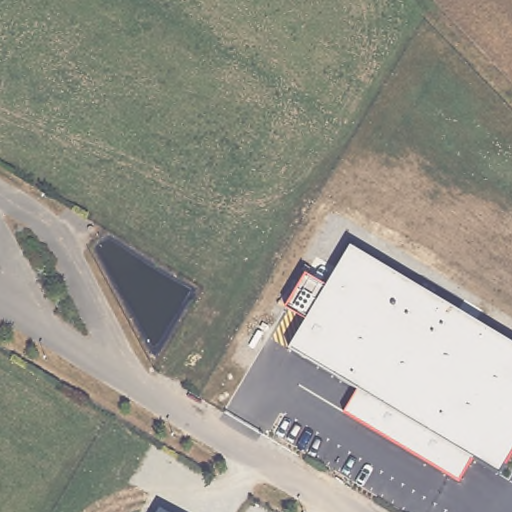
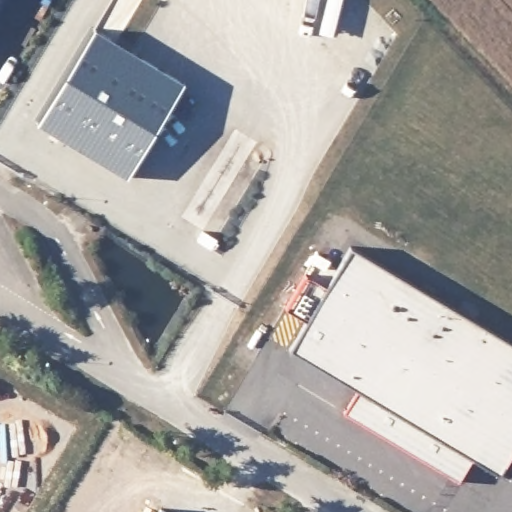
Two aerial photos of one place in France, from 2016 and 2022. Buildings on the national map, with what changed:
new [(95,26),(187,82),(129,177),(39,124),(95,26)]
unchanged [(307,321),(285,307),(307,272),(329,285),(352,245),(512,343),(512,453),(501,473),(474,457),(459,481),(345,413),(359,390),(290,349),(307,321)]
unchanged [(164,512),(160,512),(161,510),(164,512)]

